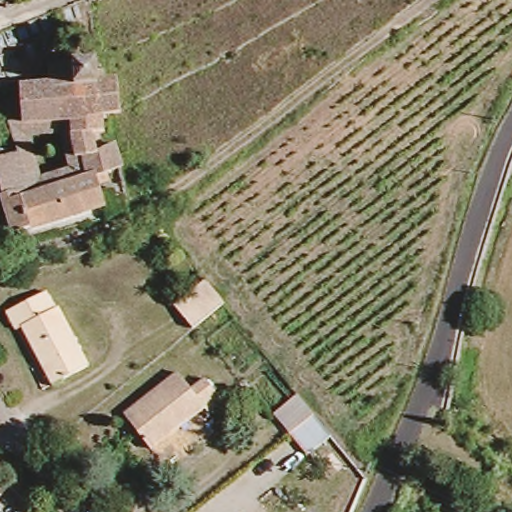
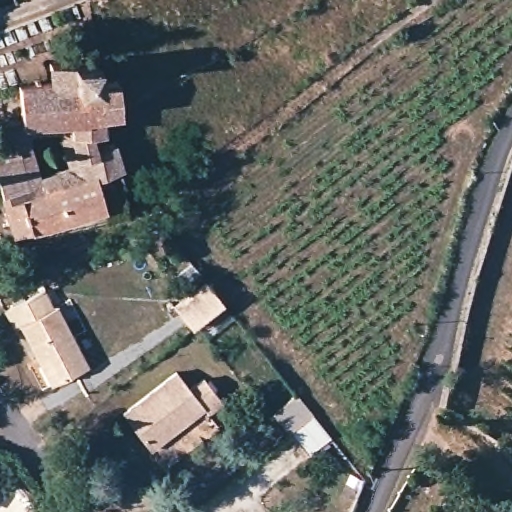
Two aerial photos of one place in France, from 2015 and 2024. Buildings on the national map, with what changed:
unchanged [(16,75),(48,73),(46,57),(88,51),(90,61),(99,61),(100,69),(110,67),(114,102),(93,105),(19,115),(16,75)]
unchanged [(97,120),(92,123),(95,135),(108,134),(118,164),(113,165),(98,171),(69,180),(66,161),(60,126),(26,131),(30,156),(19,162),(23,182),(0,188),(0,148),(10,147),(3,116),(19,115),(93,105),(97,120)]
unchanged [(11,235),(8,236),(2,215),(6,213),(0,190),(0,188),(23,182),(19,162),(30,156),(31,164),(66,161),(69,180),(98,171),(100,183),(95,184),(102,212),(16,240),(15,235),(11,235)]
unchanged [(172,307),(206,278),(226,303),(192,331),(172,307)]
unchanged [(20,332),(15,335),(3,312),(40,291),(51,315),(56,312),(87,370),(58,387),(52,390),(38,367),(20,332)]
unchanged [(180,379),(192,396),(207,385),(226,408),(210,422),(206,417),(154,457),(125,420),(180,379)]
unchanged [(289,428),(287,430),(268,404),(293,382),(313,407),(330,430),(305,450),(289,428)]

